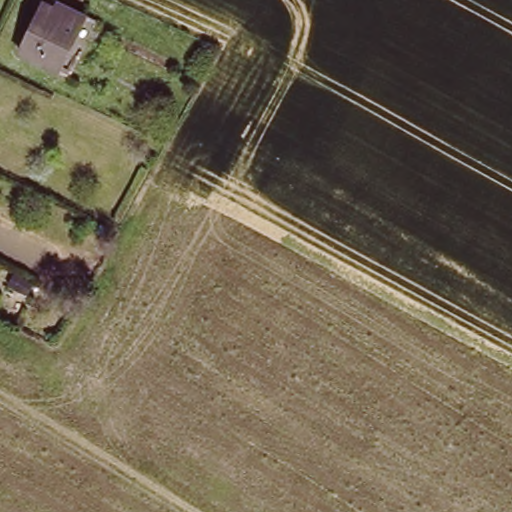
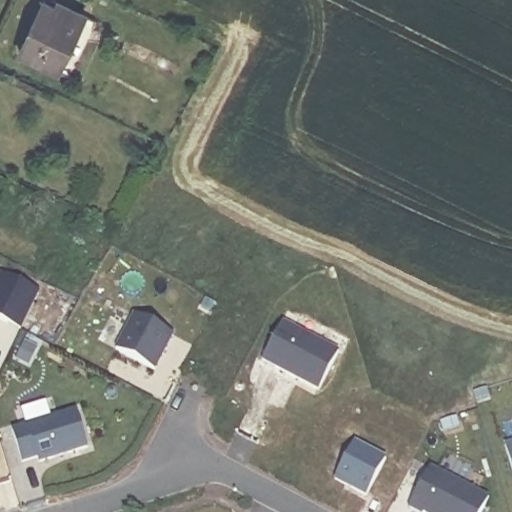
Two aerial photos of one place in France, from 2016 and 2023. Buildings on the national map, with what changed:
unchanged [(19,56),(42,10),(55,16),(59,7),(89,22),(84,30),(61,76),(19,56)]
new [(0,319),(0,276),(1,274),(39,292),(22,329),(0,319)]
new [(133,316),(174,337),(156,371),(116,350),(133,316)]
new [(284,322),(339,350),(319,391),(264,362),(284,322)]
new [(38,459),(24,462),(15,429),(77,411),(88,449),(40,463),(38,459)]
new [(336,481),(356,442),(389,458),(367,497),(336,481)]
new [(512,442),(512,467),(506,444),(512,442)]
new [(431,467),(490,497),(482,512),(419,512),(411,507),(431,467)]

